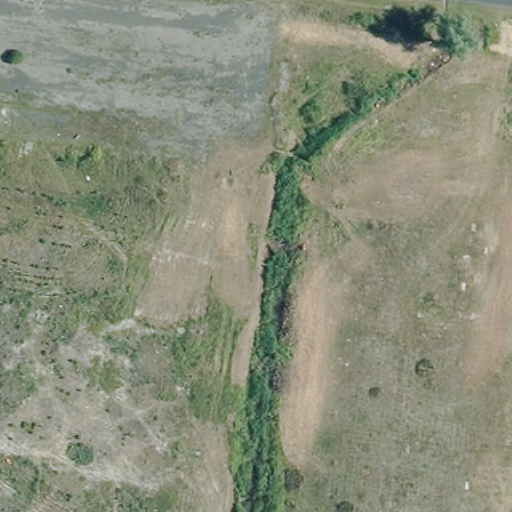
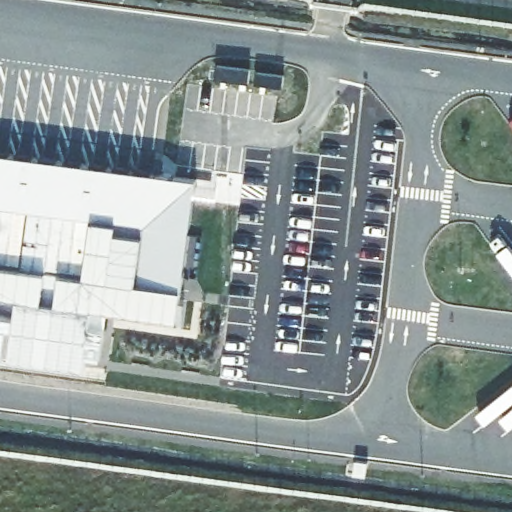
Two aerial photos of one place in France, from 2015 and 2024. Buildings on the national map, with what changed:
new [(197,171),(186,316),(95,311),(84,370),(0,358),(0,150),(197,171)]

